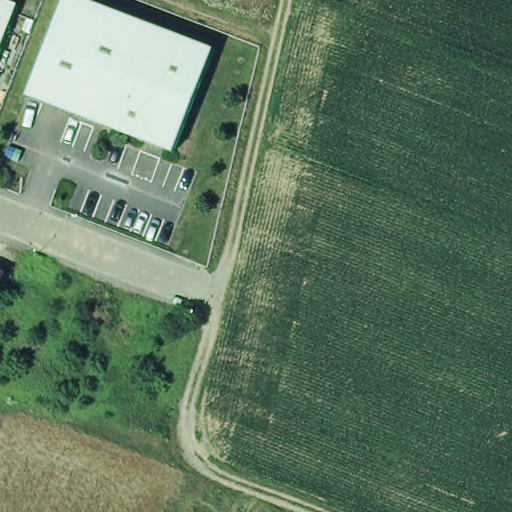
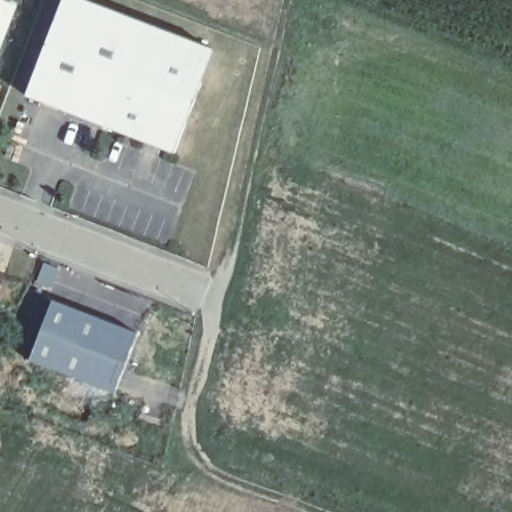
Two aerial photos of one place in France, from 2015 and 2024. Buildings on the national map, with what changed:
new [(0,0),(3,0),(18,6),(0,53),(0,0)]
unchanged [(25,104),(61,0),(81,0),(210,52),(170,157),(25,104)]
unchanged [(0,281),(0,271),(4,272),(0,281)]
new [(52,298),(137,332),(114,393),(28,360),(52,298)]

